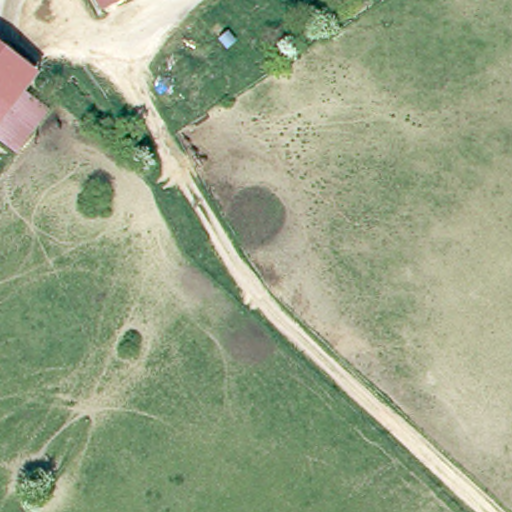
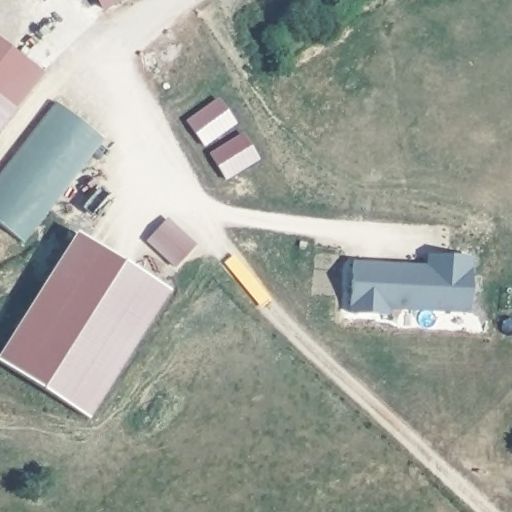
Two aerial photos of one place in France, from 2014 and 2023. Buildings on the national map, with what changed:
unchanged [(102,10),(97,0),(120,0),(102,10)]
unchanged [(0,124),(0,44),(39,74),(0,124)]
new [(104,139),(22,244),(0,226),(0,172),(53,103),(104,139)]
new [(167,291),(89,418),(0,363),(0,352),(75,232),(167,291)]
new [(425,268),(425,263),(425,257),(444,258),(469,260),(466,313),(386,310),(386,316),(348,313),(351,263),(425,268)]

